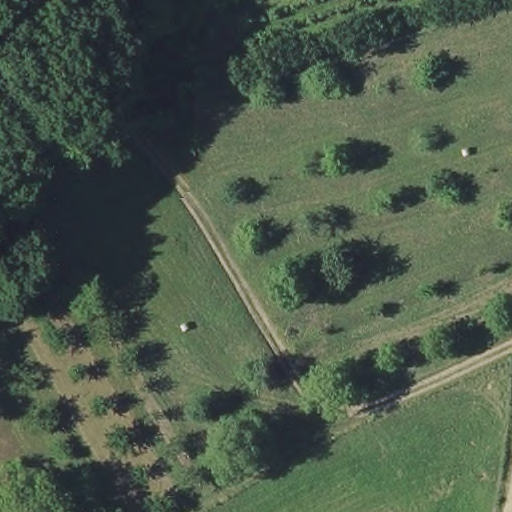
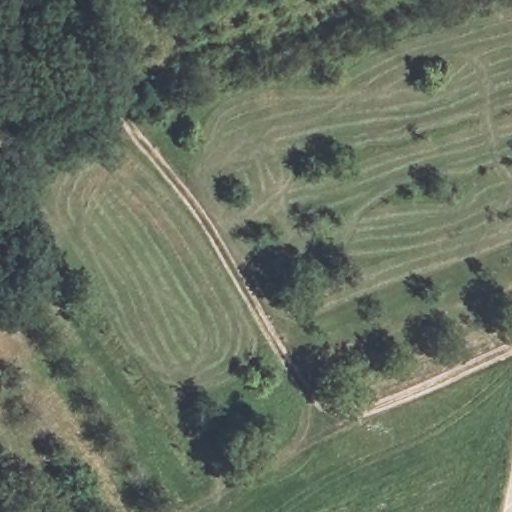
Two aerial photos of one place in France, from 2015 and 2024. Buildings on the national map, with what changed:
[]

